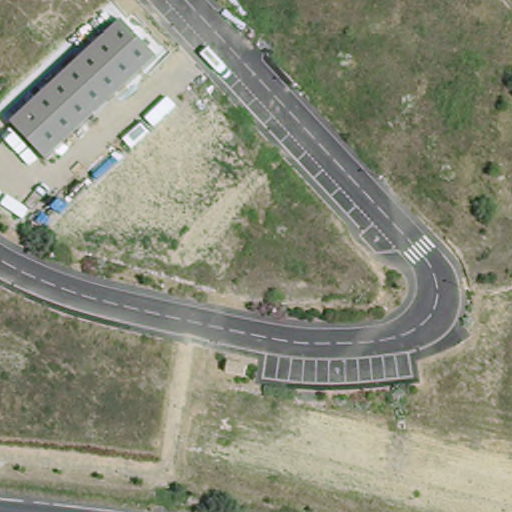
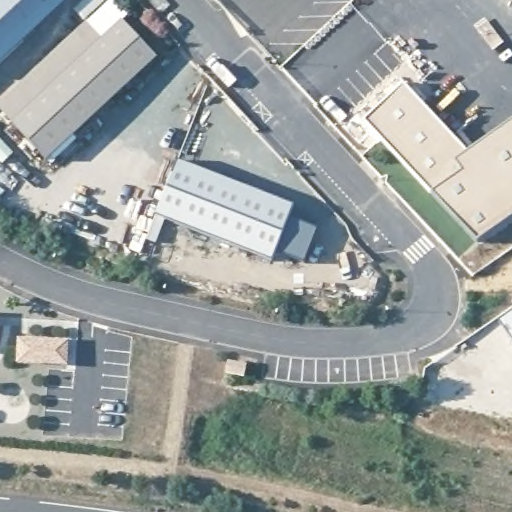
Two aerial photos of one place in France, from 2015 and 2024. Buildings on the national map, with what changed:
new [(0,65),(0,0),(69,0),(0,65)]
new [(6,114),(40,80),(32,72),(110,0),(115,0),(129,15),(124,22),(14,122),(6,114)]
unchanged [(11,124),(124,22),(158,60),(46,162),(11,124)]
new [(431,194),(364,120),(404,82),(469,151),(512,120),(512,215),(475,241),(431,194)]
new [(178,162),(295,207),(290,221),(277,255),(273,264),(156,218),(178,162)]
new [(290,221),(317,232),(305,266),(277,255),(290,221)]
new [(498,319),(512,309),(512,339),(498,319)]
new [(20,342),(70,345),(69,370),(19,367),(20,342)]

